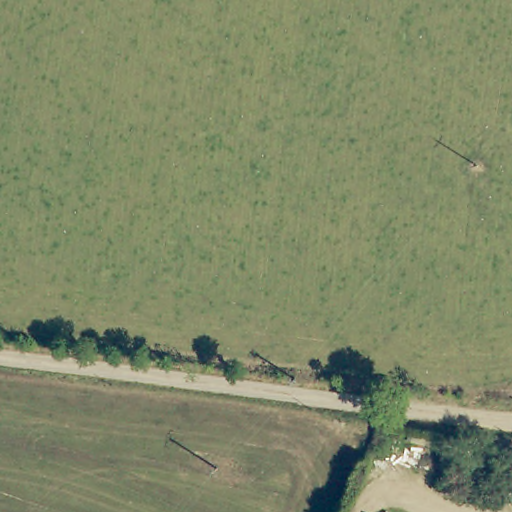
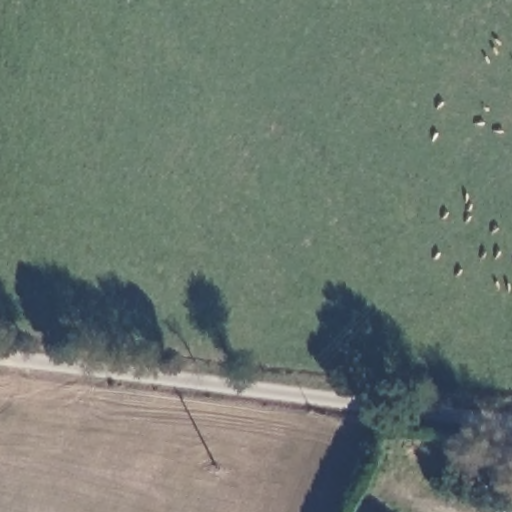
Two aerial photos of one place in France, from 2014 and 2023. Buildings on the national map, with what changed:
unchanged [(365,512),(362,512),(362,511),(365,512)]

